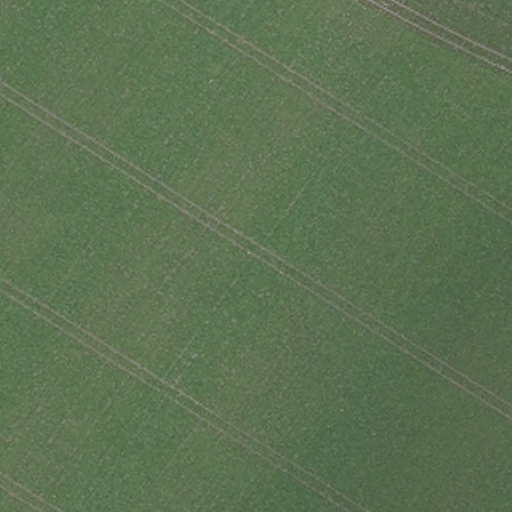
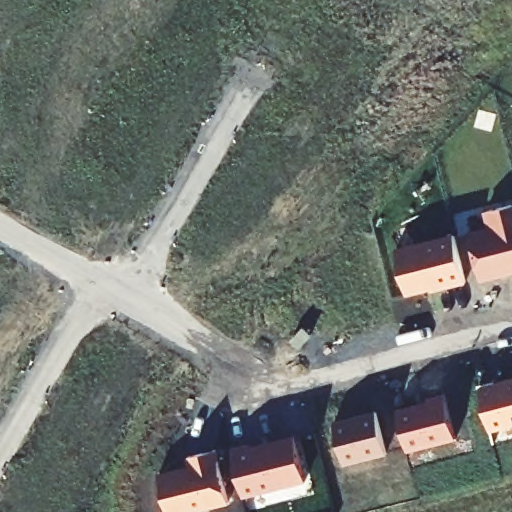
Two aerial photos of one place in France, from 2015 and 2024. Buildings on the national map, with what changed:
new [(482,281),(469,231),(488,227),(485,211),(512,205),(512,273),(482,281)]
new [(467,282),(432,291),(431,287),(409,293),(397,247),(455,232),(467,282)]
new [(492,431),(479,385),(512,377),(512,425),(492,431)]
new [(457,439),(409,452),(396,407),(445,393),(457,439)]
new [(387,455),(344,465),(333,419),(377,410),(387,455)]
new [(307,481),(245,497),(232,447),(251,442),(252,446),(295,436),(307,481)]
new [(230,503),(193,512),(170,512),(160,471),(191,465),(189,457),(219,450),(230,503)]

